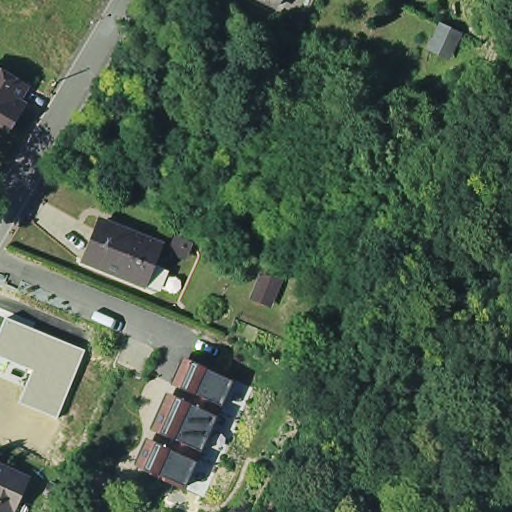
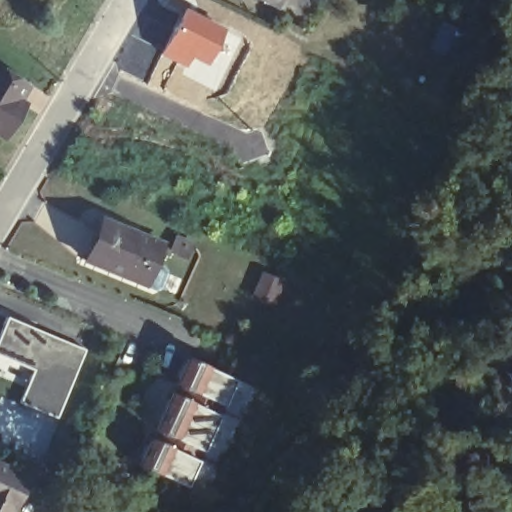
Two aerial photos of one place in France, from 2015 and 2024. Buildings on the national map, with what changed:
unchanged [(280,9),(278,12),(252,0),(284,0),(280,9)]
new [(224,30),(208,68),(194,62),(190,71),(159,56),(182,10),(224,30)]
unchanged [(449,50),(431,41),(442,19),(460,28),(449,50)]
unchanged [(12,125),(0,142),(0,75),(28,94),(18,107),(22,111),(12,125)]
unchanged [(145,286),(141,284),(84,263),(91,247),(99,226),(100,222),(121,230),(121,232),(135,238),(136,236),(160,245),(158,251),(152,266),(164,270),(165,274),(164,277),(160,288),(154,290),(145,286)]
unchanged [(262,270),(280,277),(273,295),(272,297),(255,290),(256,288),(262,270)]
unchanged [(59,419),(20,403),(32,370),(0,356),(0,332),(6,318),(85,350),(59,419)]
unchanged [(233,377),(184,486),(138,465),(186,354),(233,377)]
unchanged [(31,479),(15,512),(0,512),(0,465),(31,479)]

